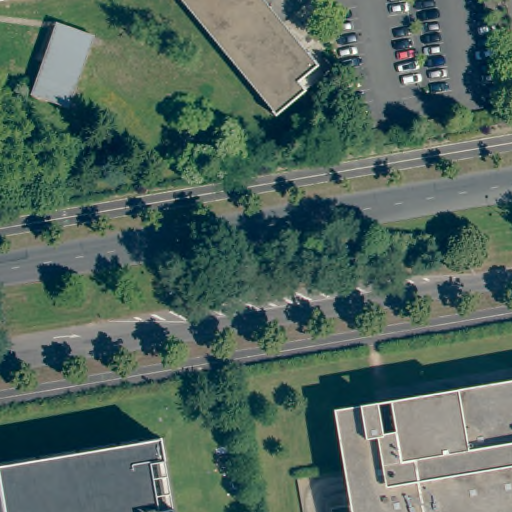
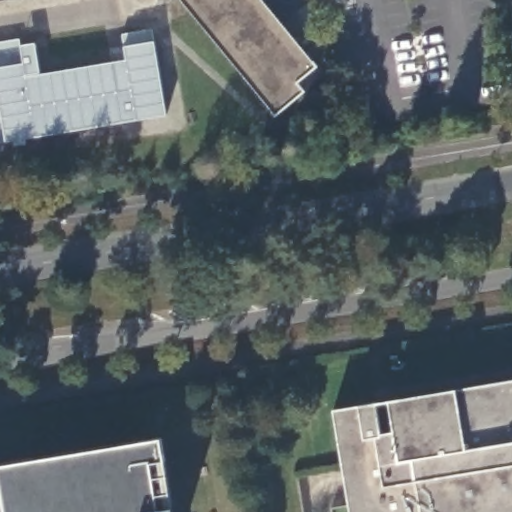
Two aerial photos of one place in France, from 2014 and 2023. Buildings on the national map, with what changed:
unchanged [(0,1),(0,0),(8,0),(0,1)]
unchanged [(312,61),(313,60),(319,66),(326,61),(335,72),(278,120),(274,114),(275,113),(181,0),(261,0),(312,61)]
demolished [(92,37),(67,108),(30,95),(55,24),(92,37)]
new [(22,47),(36,44),(41,74),(126,60),(124,47),(121,35),(154,30),(155,41),(166,117),(5,144),(0,144),(0,43),(21,39),(22,47)]
unchanged [(379,433),(392,432),(387,401),(512,379),(512,512),(348,512),(331,410),(374,402),(379,433)]
unchanged [(175,512),(0,512),(0,471),(163,443),(175,512)]

